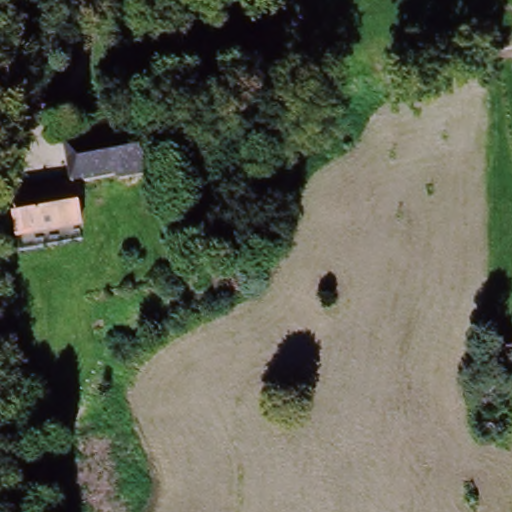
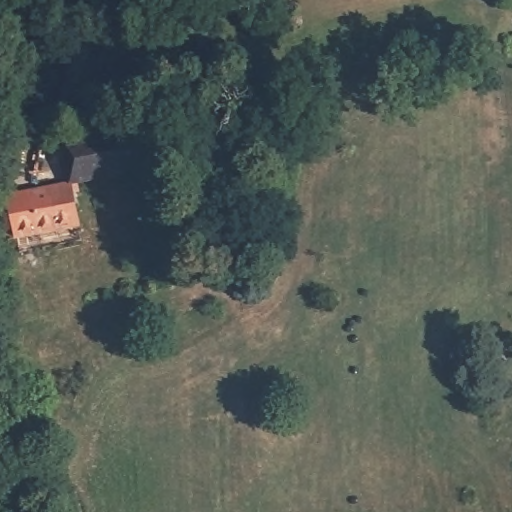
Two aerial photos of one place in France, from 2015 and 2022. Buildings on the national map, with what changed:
unchanged [(81,197),(79,185),(73,186),(66,187),(61,146),(65,145),(123,136),(135,134),(141,179),(121,182),(120,177),(106,180),(108,191),(101,192),(96,193),(81,197)]
unchanged [(28,194),(66,187),(73,186),(74,195),(70,195),(70,200),(75,231),(49,235),(35,237),(28,194)]

